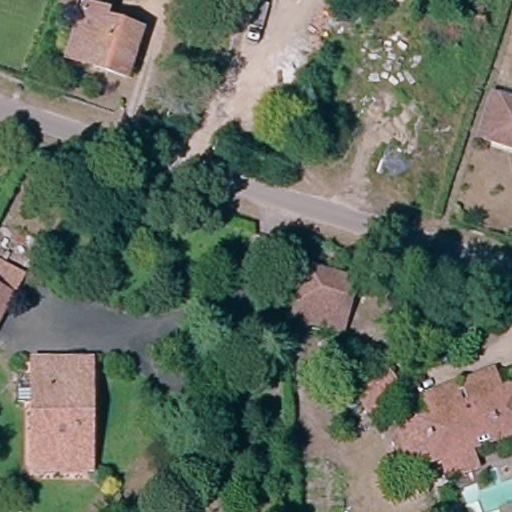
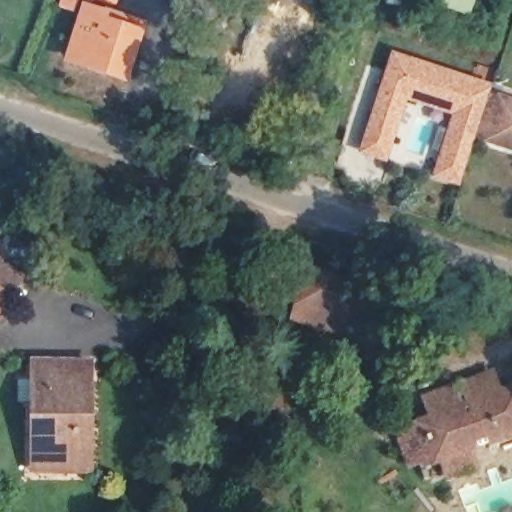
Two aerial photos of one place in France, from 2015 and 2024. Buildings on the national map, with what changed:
new [(56,6),(59,0),(79,0),(73,14),(56,6)]
new [(94,0),(119,0),(117,5),(94,0)]
unchanged [(78,10),(96,16),(94,24),(129,36),(114,80),(60,62),(78,10)]
new [(486,139),(476,135),(460,185),(433,176),(452,114),(407,100),(387,161),(359,152),(393,50),(492,83),(488,95),(499,97),(512,102),(512,146),(486,139)]
demolished [(499,97),(512,102),(512,146),(486,139),(499,97)]
unchanged [(351,284),(338,335),(291,322),(304,272),(351,284)]
unchanged [(379,418),(368,405),(365,408),(347,387),(369,368),(387,390),(397,402),(379,418)]
unchanged [(86,467),(31,465),(35,372),(90,375),(86,467)]
unchanged [(450,485),(443,463),(433,466),(419,429),(430,425),(422,402),(445,393),(447,398),(461,393),(458,387),(484,377),(492,399),(512,391),(512,436),(469,453),(477,473),(450,485)]

